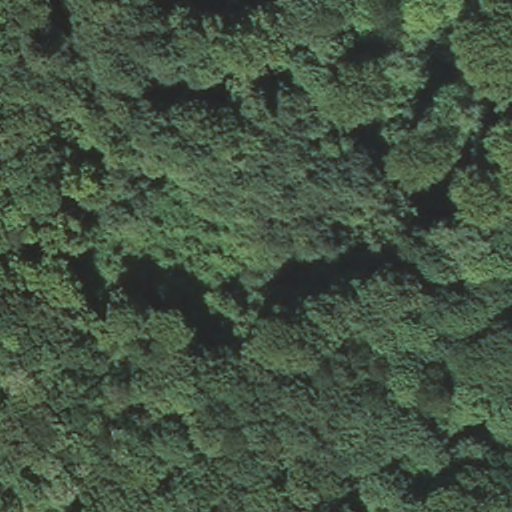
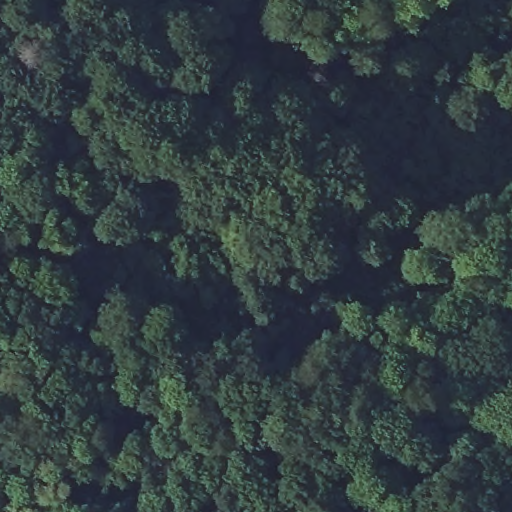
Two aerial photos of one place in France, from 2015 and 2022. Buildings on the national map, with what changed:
[]

